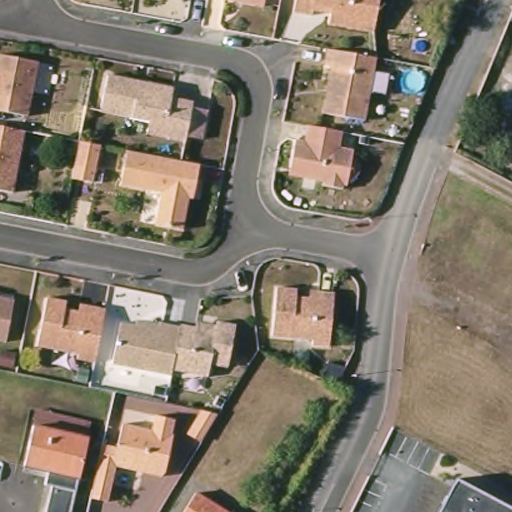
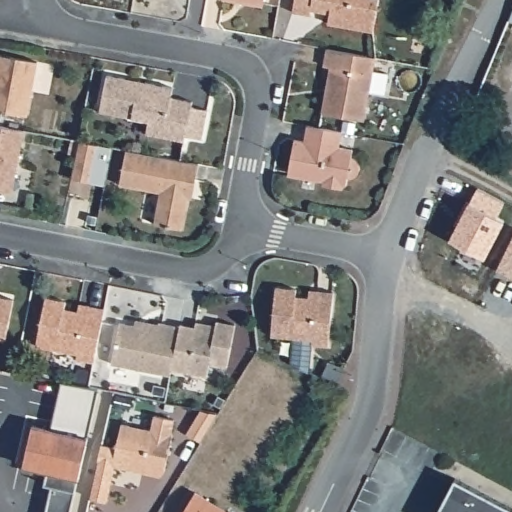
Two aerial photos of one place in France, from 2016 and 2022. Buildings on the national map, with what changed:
unchanged [(224,0),(263,0),(262,7),(224,0)]
unchanged [(381,0),(373,31),(329,20),(332,5),(315,1),(312,11),(294,7),(296,0),(381,0)]
unchanged [(330,48),(380,57),(368,119),(326,113),(330,93),(335,66),(327,65),(330,48)]
unchanged [(26,116),(0,112),(0,56),(36,62),(26,116)]
unchanged [(199,138),(182,135),(181,140),(142,133),(145,121),(96,112),(103,74),(169,87),(167,97),(189,101),(188,106),(204,109),(199,138)]
unchanged [(331,130),(336,131),(341,132),(338,147),(352,150),(350,158),(352,159),(355,160),(356,161),(358,164),(358,166),(358,169),(358,172),(356,174),(355,176),(351,177),(347,177),(345,185),(342,185),(342,189),(322,185),(322,181),(295,176),(295,174),(291,168),(289,167),(294,139),(304,141),(307,125),(331,130)]
unchanged [(24,131),(12,193),(0,191),(0,127),(20,130),(24,131)]
unchanged [(99,145),(92,182),(71,178),(79,141),(99,145)]
unchanged [(195,182),(192,197),(187,197),(181,229),(154,224),(160,192),(120,185),(126,150),(199,164),(195,182)]
new [(461,218),(459,217),(467,201),(471,203),(478,188),(505,202),(497,217),(505,221),(486,258),(450,239),(461,218)]
new [(455,223),(459,217),(461,218),(458,225),(455,223)]
unchanged [(330,345),(313,344),(313,339),(272,336),(276,288),(296,289),(296,297),(310,298),(310,290),(317,291),(333,292),(330,345)]
unchanged [(69,305),(80,307),(81,300),(91,301),(109,305),(105,327),(99,358),(81,354),(82,349),(41,342),(50,294),(70,298),(69,305)]
unchanged [(10,341),(0,340),(0,297),(19,301),(10,341)]
unchanged [(180,327),(180,325),(215,331),(216,322),(235,325),(227,367),(210,364),(207,377),(171,370),(180,327)]
unchanged [(170,376),(112,364),(120,323),(157,331),(159,323),(180,327),(171,370),(170,376)]
unchanged [(190,433),(204,410),(220,413),(202,441),(190,433)]
unchanged [(25,467),(34,426),(36,411),(90,424),(87,439),(78,479),(25,467)]
unchanged [(174,420),(170,435),(172,435),(164,472),(160,476),(115,466),(106,502),(90,498),(92,486),(94,479),(101,445),(116,448),(121,424),(151,431),(155,415),(174,420)]
unchanged [(70,512),(45,512),(50,486),(44,484),(47,472),(78,479),(70,512)]
unchanged [(512,510),(512,512),(438,512),(455,480),(512,510)]
unchanged [(235,512),(186,512),(200,489),(235,512)]

